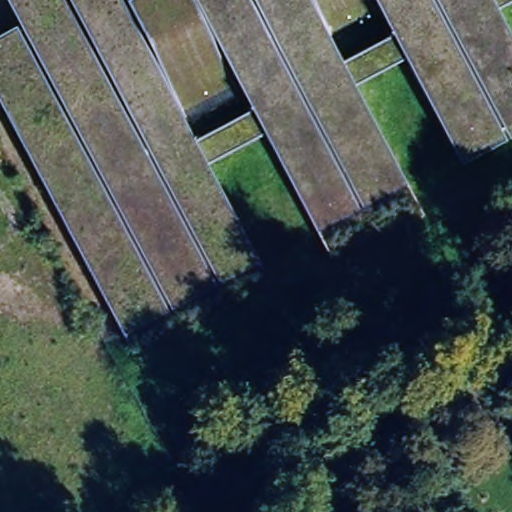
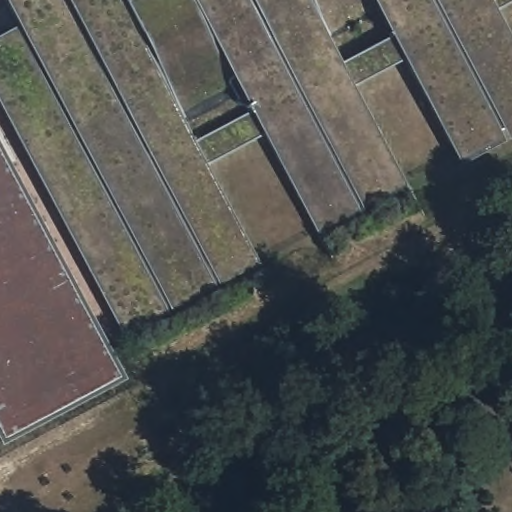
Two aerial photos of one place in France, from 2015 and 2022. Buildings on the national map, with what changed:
unchanged [(500,13),(512,33),(512,135),(464,164),(405,60),(355,88),(423,211),(328,256),(263,138),(208,166),(270,286),(145,352),(132,349),(0,103),(0,38),(17,30),(3,0),(512,0),(512,5),(500,13)]
new [(0,146),(123,377),(5,442),(0,431),(0,146)]

